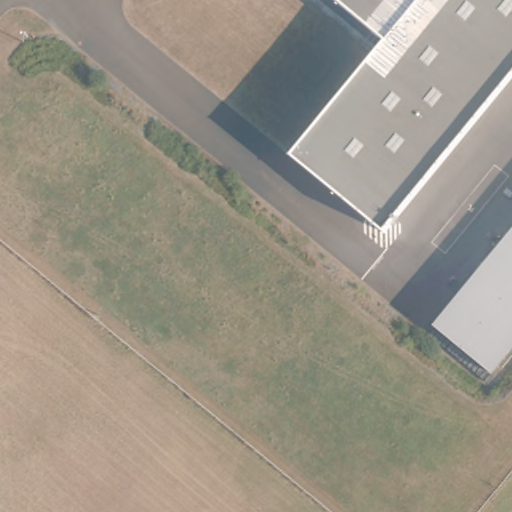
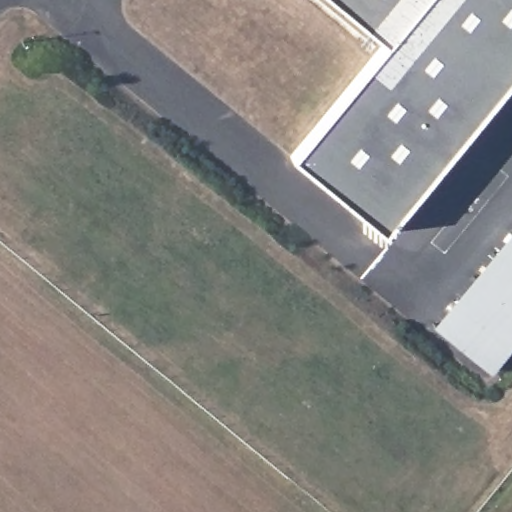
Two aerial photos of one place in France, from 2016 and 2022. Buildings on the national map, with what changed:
unchanged [(288,159),(385,40),(336,0),(512,0),(512,77),(383,236),(288,159)]
unchanged [(464,354),(432,329),(512,229),(512,348),(490,376),(464,354)]

